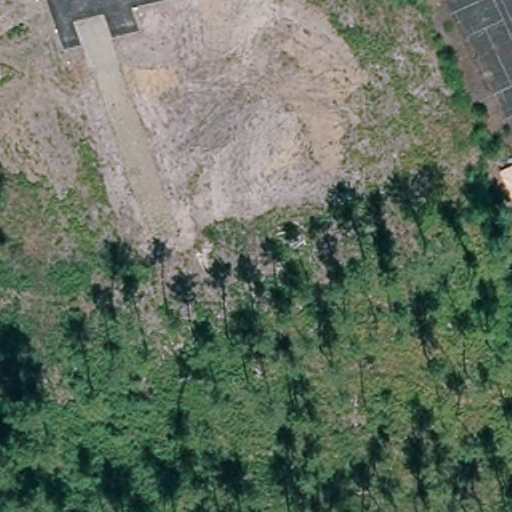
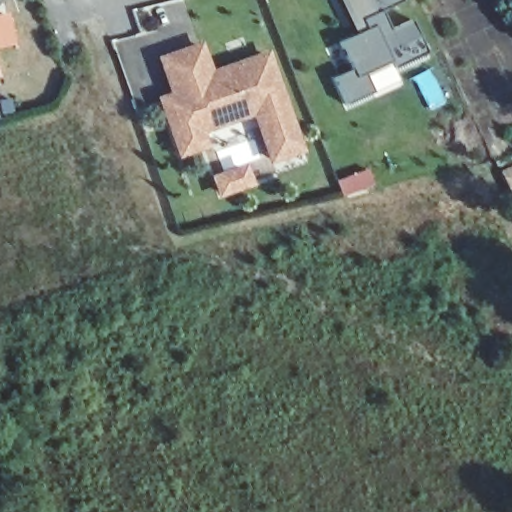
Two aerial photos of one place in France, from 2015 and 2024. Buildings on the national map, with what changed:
new [(362,33),(368,30),(364,20),(376,14),(370,0),(405,0),(406,2),(384,11),(393,30),(414,20),(430,54),(396,71),(393,64),(368,75),(376,94),(349,106),(336,78),(354,70),(341,42),(362,33)]
new [(274,160),(265,136),(257,113),(201,132),(206,146),(183,155),(172,125),(164,102),(177,97),(164,61),(202,47),(212,76),(268,56),(293,126),(301,150),(274,160)]
new [(508,180),(505,173),(512,169),(512,189),(508,180)]

